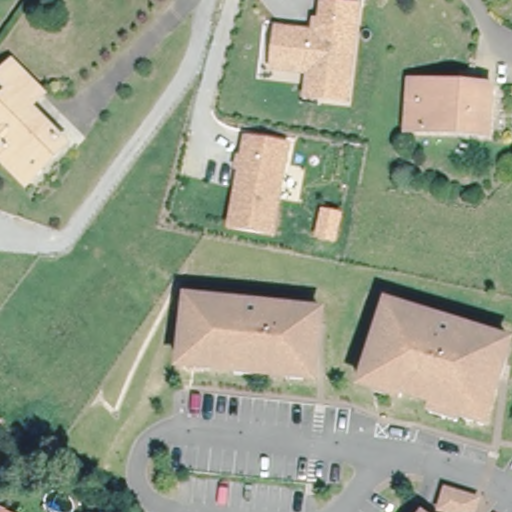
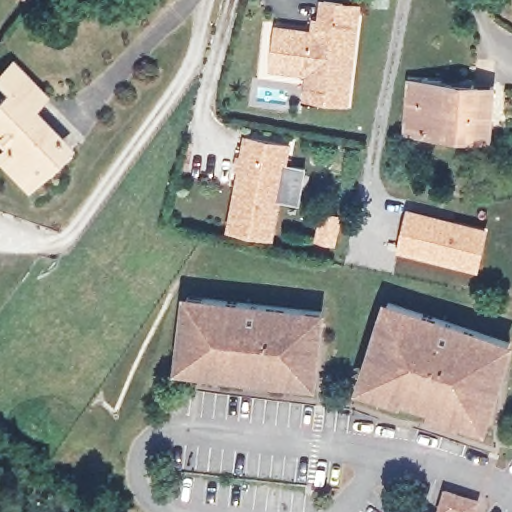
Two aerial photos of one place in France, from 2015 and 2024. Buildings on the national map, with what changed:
unchanged [(357,4),(347,99),(320,96),(322,72),(272,66),(276,27),(319,31),(322,0),(357,4)]
unchanged [(47,160),(31,177),(1,147),(10,139),(0,129),(0,97),(12,85),(0,73),(0,70),(13,57),(42,88),(30,100),(39,108),(46,115),(64,134),(69,139),(47,160)]
unchanged [(490,133),(419,129),(408,127),(412,79),(423,80),(493,85),(490,133)]
unchanged [(290,144),(276,221),(273,234),(268,232),(231,225),(247,135),(290,144)]
new [(410,211),(486,230),(481,252),(409,215),(410,211)]
new [(409,215),(481,252),(477,266),(401,249),(409,215)]
unchanged [(292,377),(260,373),(258,373),(236,371),(234,371),(202,368),(190,366),(180,365),(180,361),(181,357),(183,336),(187,297),(222,301),(322,311),(315,372),(314,380),(292,377)]
unchanged [(428,408),(397,398),(396,402),(382,397),(370,393),(357,390),(372,341),(372,340),(376,329),(376,327),(382,307),(505,346),(479,430),(464,425),(454,422),(453,426),(426,418),(427,412),(428,408)]
unchanged [(471,512),(447,512),(440,510),(446,490),(475,498),(471,512)]

